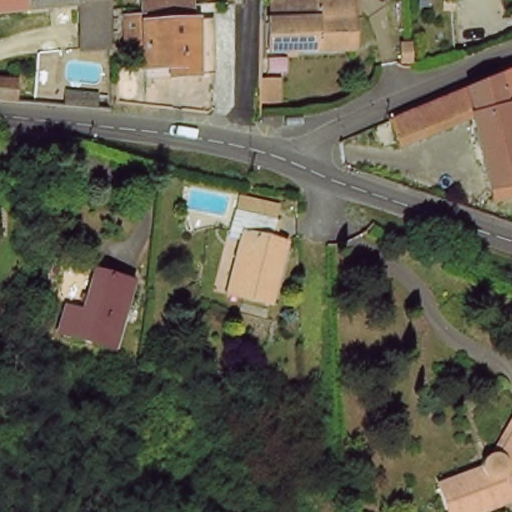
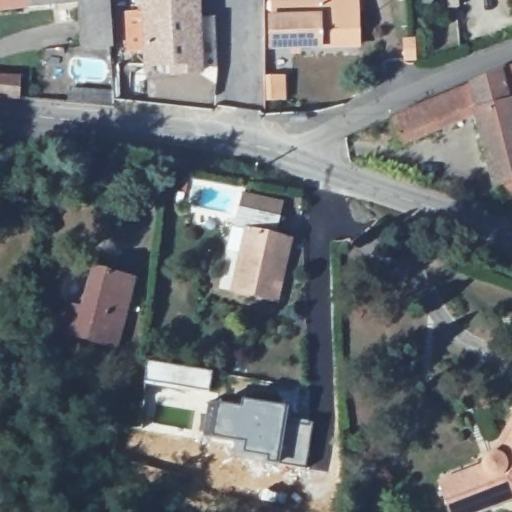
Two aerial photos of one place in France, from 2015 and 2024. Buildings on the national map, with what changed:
unchanged [(87,60),(80,4),(0,12),(0,0),(112,0),(112,5),(117,57),(87,60)]
unchanged [(150,57),(135,58),(132,24),(149,21),(147,7),(147,0),(201,0),(201,3),(208,66),(152,70),(150,57)]
unchanged [(360,50),(273,50),(274,20),(274,0),(312,0),(361,0),(361,2),(360,50)]
unchanged [(439,6),(439,0),(451,0),(451,6),(439,6)]
unchanged [(512,114),(512,115),(512,195),(502,198),(479,112),(405,136),(397,114),(485,79),(512,68),(512,113),(512,114)]
unchanged [(267,96),(268,72),(280,72),(279,95),(267,96)]
unchanged [(19,97),(0,96),(0,77),(18,77),(19,97)]
unchanged [(287,215),(282,233),(295,241),(277,307),(232,292),(252,230),(235,224),(244,200),(287,215)]
unchanged [(121,348),(107,345),(64,337),(69,311),(87,315),(94,273),(120,278),(133,280),(121,348)]
new [(212,405),(241,408),(242,400),(287,407),(285,415),(277,463),(239,455),(240,445),(208,438),(212,405)]
new [(285,415),(312,420),(305,466),(277,463),(285,415)]
unchanged [(512,512),(453,512),(447,495),(480,480),(487,465),(503,462),(512,430),(512,502),(512,512)]

